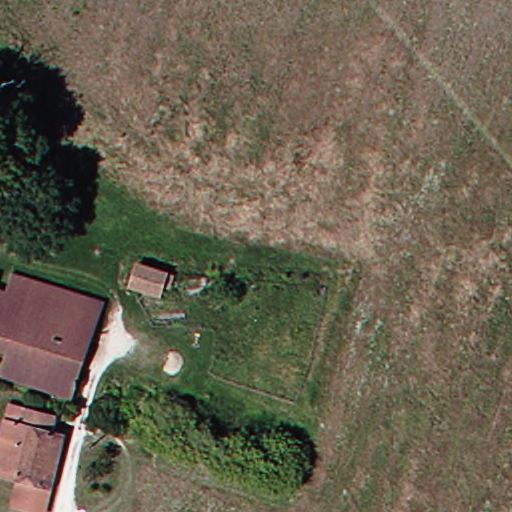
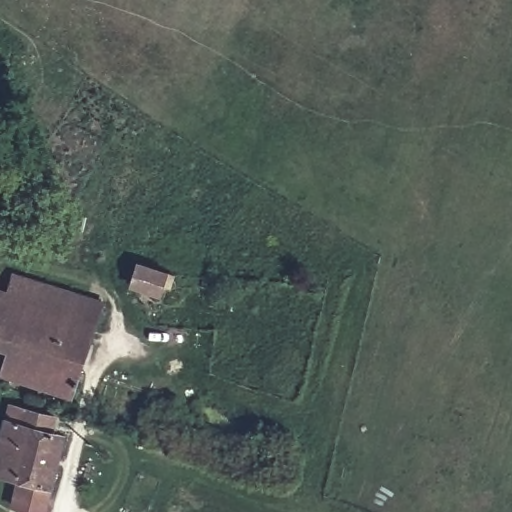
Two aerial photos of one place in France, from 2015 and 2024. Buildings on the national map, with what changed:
unchanged [(127,282),(127,264),(167,264),(168,280),(127,282)]
unchanged [(13,265),(104,292),(97,316),(84,366),(79,389),(5,372),(10,347),(0,344),(0,283),(9,285),(13,265)]
unchanged [(25,463),(0,458),(0,446),(16,395),(61,409),(57,419),(74,424),(66,454),(52,492),(21,484),(22,480),(25,463)]

